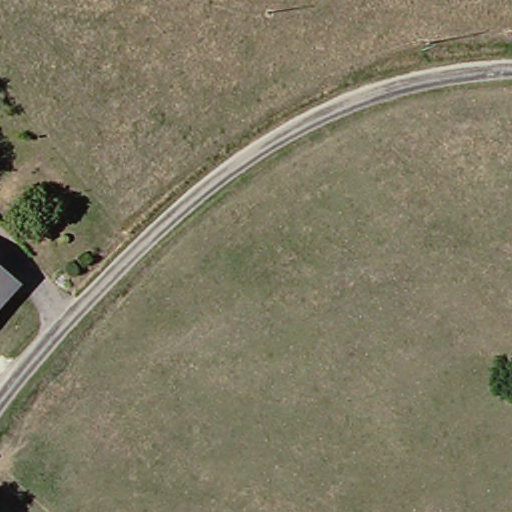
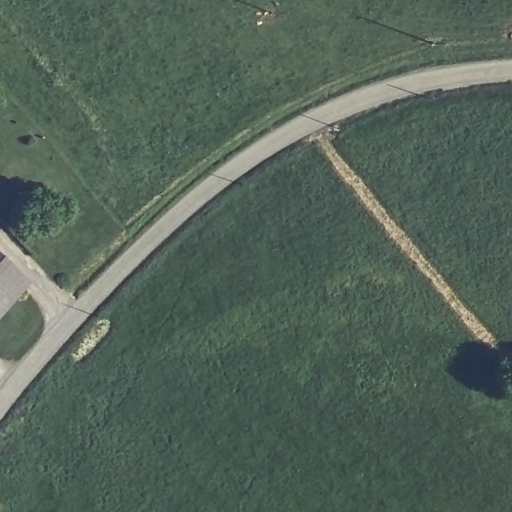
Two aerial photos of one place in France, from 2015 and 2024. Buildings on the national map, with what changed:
unchanged [(0,308),(0,271),(18,287),(0,308)]

